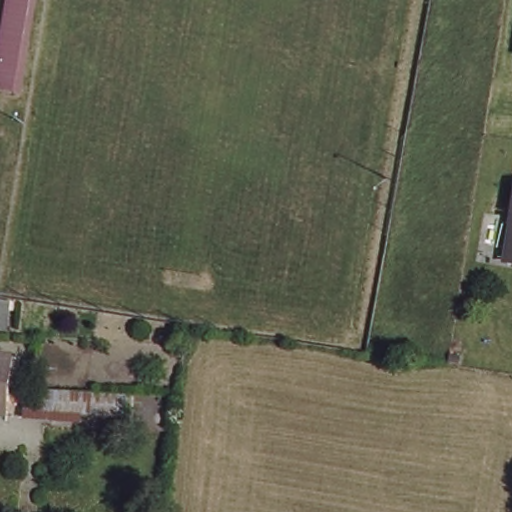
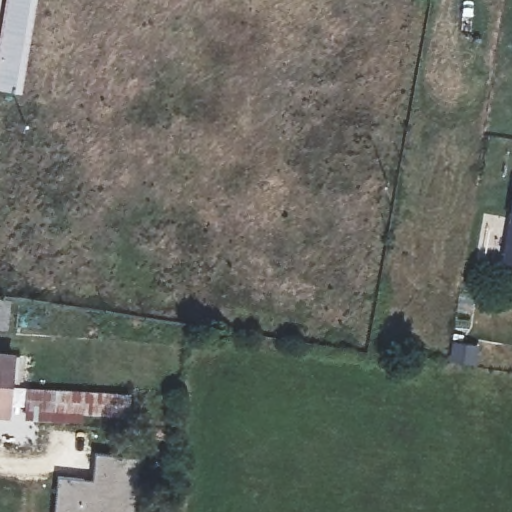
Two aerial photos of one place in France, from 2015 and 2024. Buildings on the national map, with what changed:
unchanged [(19,92),(0,89),(0,35),(6,0),(35,0),(19,92)]
unchanged [(512,223),(512,261),(505,260),(512,223)]
unchanged [(10,300),(7,329),(0,329),(0,300),(10,300)]
unchanged [(0,419),(0,359),(13,360),(8,419),(0,419)]
unchanged [(77,392),(77,409),(76,419),(36,416),(37,389),(77,392)]
unchanged [(137,396),(136,414),(77,409),(77,392),(137,396)]
new [(95,454),(140,458),(135,512),(54,512),(58,476),(84,480),(84,486),(92,487),(95,454)]

